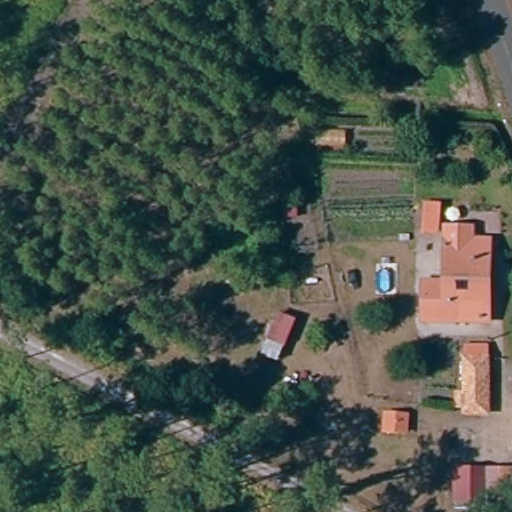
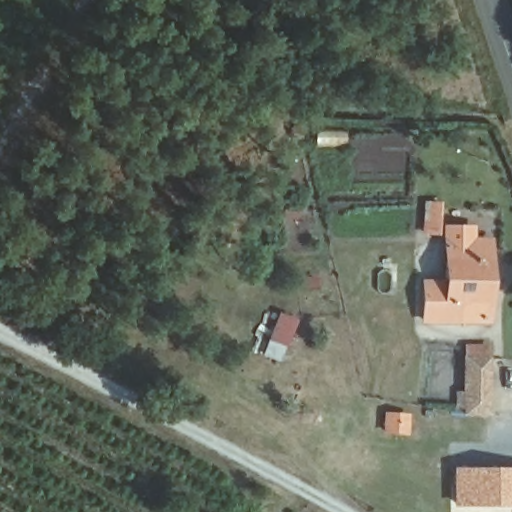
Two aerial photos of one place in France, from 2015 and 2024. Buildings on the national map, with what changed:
unchanged [(443,201),(440,237),(419,236),(423,199),(443,201)]
unchanged [(491,295),(452,292),(453,272),(453,249),(454,226),(485,227),(484,250),(492,251),(491,295)]
unchanged [(434,325),(435,272),(453,272),(452,292),(491,295),(490,326),(434,325)]
unchanged [(478,407),(463,406),(466,351),(480,351),(478,407)]
new [(388,411),(410,415),(406,439),(384,435),(388,411)]
demolished [(398,422),(420,426),(416,451),(394,447),(398,422)]
demolished [(455,462),(481,467),(478,483),(506,488),(502,512),(472,512),(474,501),(450,497),(455,462)]
new [(454,467),(512,467),(512,504),(455,506),(454,467)]

